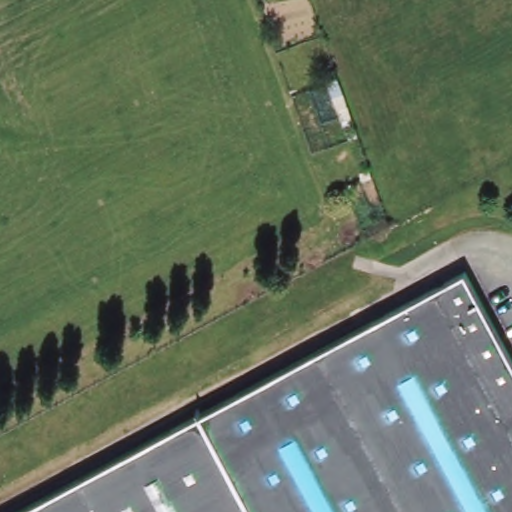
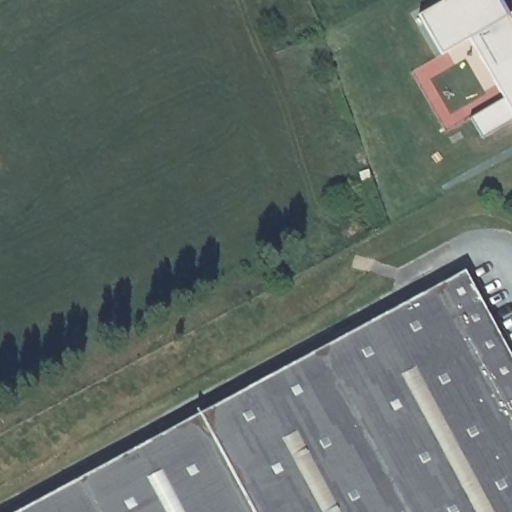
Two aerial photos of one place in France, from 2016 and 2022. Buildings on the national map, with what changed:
new [(505,98),(470,39),(442,54),(419,14),(444,0),(500,0),(512,21),(512,121),(495,132),(483,138),(471,118),(482,111),(505,98)]
unchanged [(512,352),(512,512),(22,512),(469,270),(512,352)]

